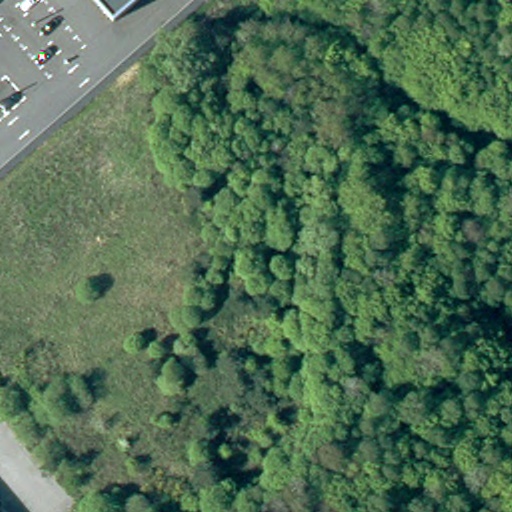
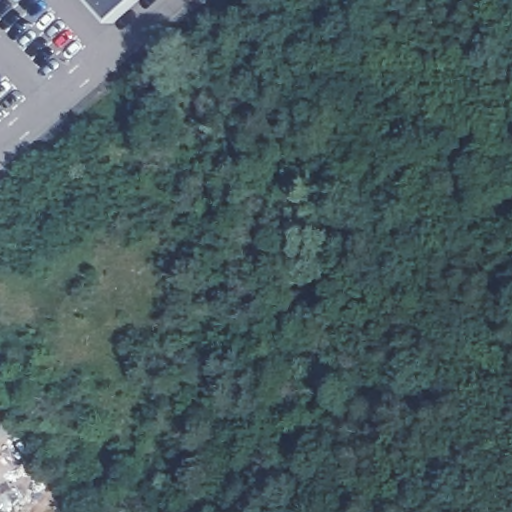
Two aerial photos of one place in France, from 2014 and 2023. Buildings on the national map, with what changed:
unchanged [(141,0),(115,23),(95,0),(141,0)]

